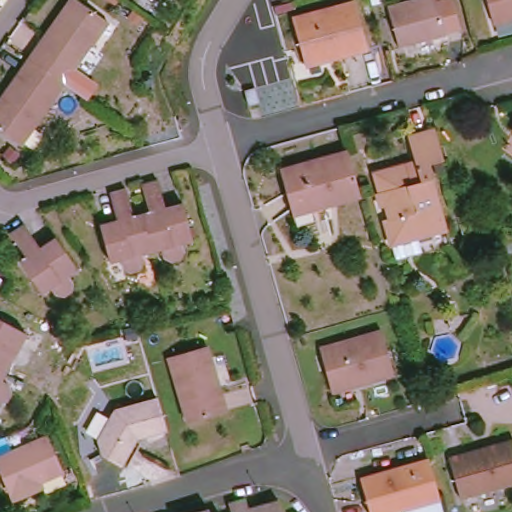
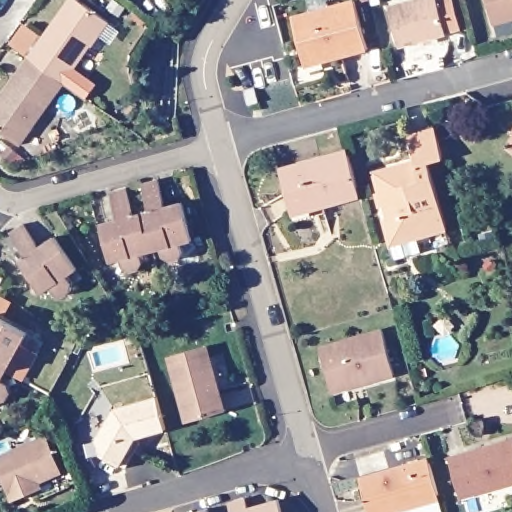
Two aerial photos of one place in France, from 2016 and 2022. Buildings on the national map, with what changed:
unchanged [(64,0),(73,0),(98,18),(103,21),(86,44),(59,83),(23,58),(64,0)]
unchanged [(407,0),(436,0),(437,1),(441,0),(451,0),(459,28),(446,31),(447,34),(401,47),(389,5),(407,0)]
unchanged [(488,0),(512,0),(512,17),(494,22),(492,16),(488,0)]
unchanged [(299,64),(288,23),(349,6),(363,52),(331,61),(301,70),(299,64)]
unchanged [(59,83),(58,85),(68,92),(58,108),(48,100),(17,144),(0,131),(0,91),(23,58),(59,83)]
unchanged [(254,86),(259,101),(248,104),(244,89),(254,86)]
unchanged [(438,159),(425,162),(447,242),(431,246),(427,233),(387,244),(380,219),(384,218),(380,205),(376,207),(373,192),(376,191),(370,171),(402,162),(403,165),(412,163),(404,134),(429,127),(438,159)]
unchanged [(359,196),(324,206),(326,214),(296,223),(292,209),(281,169),(346,150),(359,196)]
unchanged [(136,254),(138,262),(133,269),(126,271),(119,268),(116,259),(106,262),(96,223),(113,219),(105,190),(121,187),(128,214),(144,209),(137,183),(153,179),(161,205),(178,200),(188,239),(177,243),(179,250),(175,258),(166,260),(158,255),(156,249),(148,251),(136,254)]
unchanged [(68,282),(65,292),(58,295),(51,294),(46,287),(36,293),(14,260),(21,255),(5,232),(19,223),(35,245),(50,235),(73,269),(64,275),(68,282)]
unchanged [(23,333),(18,343),(23,346),(26,354),(22,362),(13,365),(7,362),(3,371),(0,376),(0,321),(23,333)]
unchanged [(393,374),(360,383),(359,378),(352,379),(353,384),(333,391),(321,347),(381,329),(393,374)]
unchanged [(187,421),(168,357),(208,346),(218,379),(213,381),(221,410),(187,421)]
unchanged [(4,383),(6,392),(3,399),(0,400),(0,381),(4,383)]
unchanged [(161,428),(128,438),(125,443),(126,446),(116,464),(97,453),(91,439),(109,409),(151,397),(161,428)]
unchanged [(512,483),(462,497),(450,456),(512,439),(512,483)]
unchanged [(31,492),(8,502),(0,483),(0,459),(41,441),(56,476),(36,484),(37,486),(38,489),(31,492)]
unchanged [(355,483),(423,463),(433,499),(434,504),(403,512),(364,512),(355,483)]
unchanged [(277,512),(228,512),(226,502),(241,498),(243,507),(273,499),(277,512)]
unchanged [(203,508),(204,512),(188,512),(203,508)]

